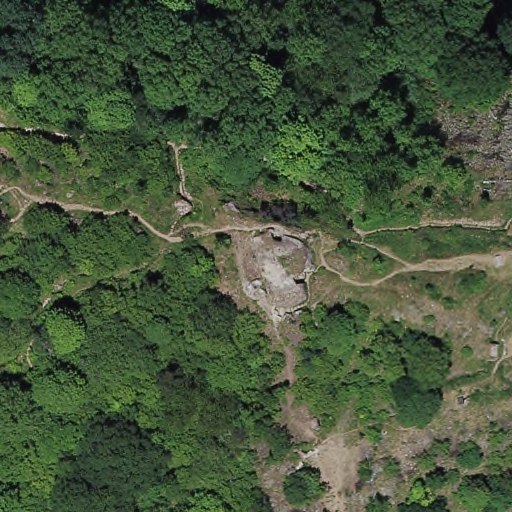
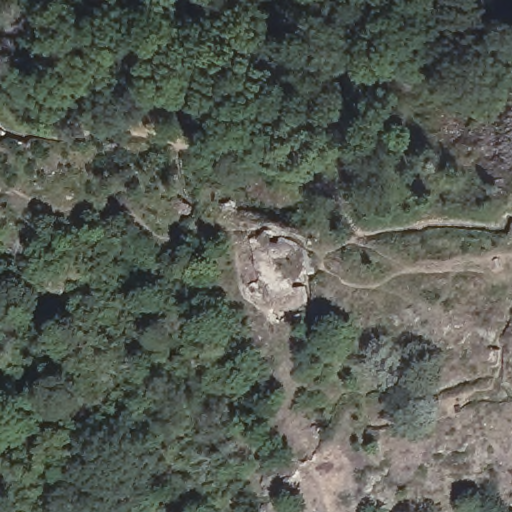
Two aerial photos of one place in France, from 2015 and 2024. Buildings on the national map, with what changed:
unchanged [(274,242),(286,244),(301,248),(307,261),(307,278),(296,289),(281,299),(269,289),(259,260),(256,244),(274,242)]

